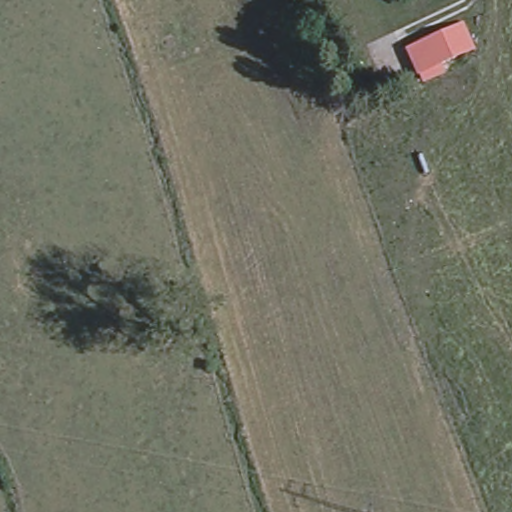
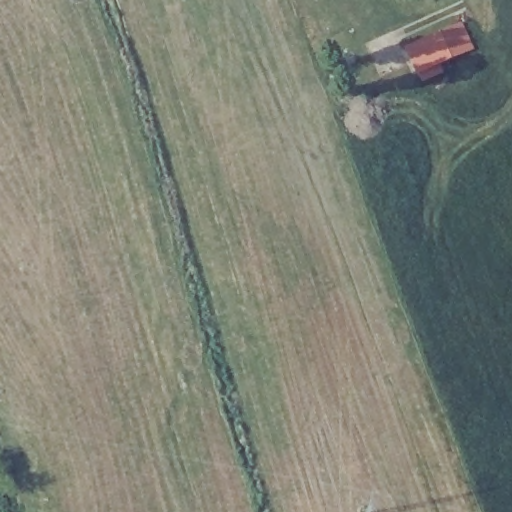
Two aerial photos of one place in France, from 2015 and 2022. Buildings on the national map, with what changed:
unchanged [(465,22),(477,51),(444,65),(447,72),(422,82),(405,47),(465,22)]

